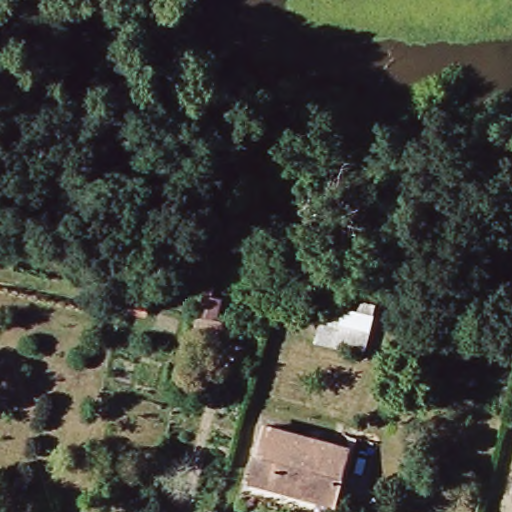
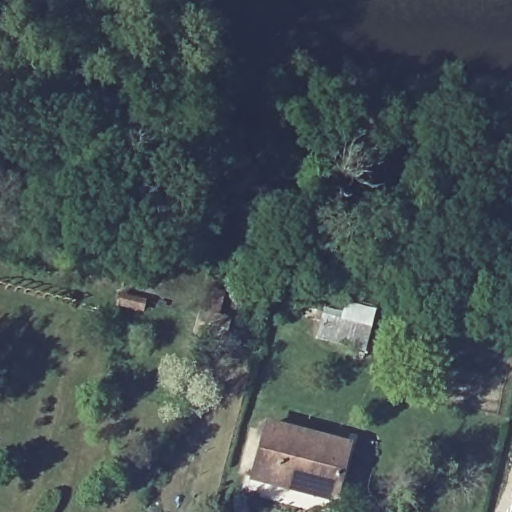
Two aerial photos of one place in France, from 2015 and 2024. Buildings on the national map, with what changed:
unchanged [(211,291),(220,295),(215,320),(234,325),(230,338),(227,349),(200,341),(202,331),(211,291)]
unchanged [(120,295),(147,299),(144,314),(118,310),(120,295)]
unchanged [(357,311),(361,300),(373,303),(362,355),(316,343),(325,306),(357,311)]
unchanged [(249,482),(262,430),(333,448),(345,450),(331,503),(320,500),(249,482)]

